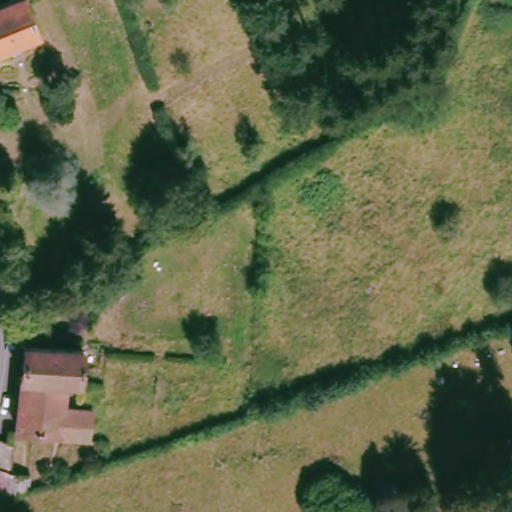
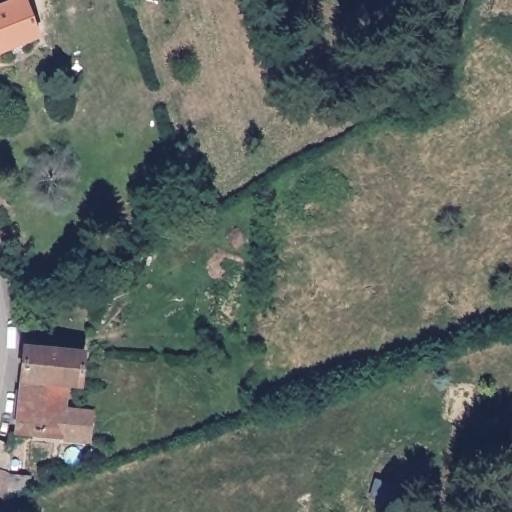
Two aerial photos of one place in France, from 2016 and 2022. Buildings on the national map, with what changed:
unchanged [(30,0),(44,35),(0,53),(0,4),(10,0),(30,0)]
unchanged [(83,345),(80,378),(68,378),(66,403),(91,405),(90,436),(62,434),(62,426),(20,424),(23,348),(25,342),(25,340),(83,345)]
unchanged [(8,466),(29,471),(28,484),(5,492),(0,491),(0,438),(12,444),(8,466)]

